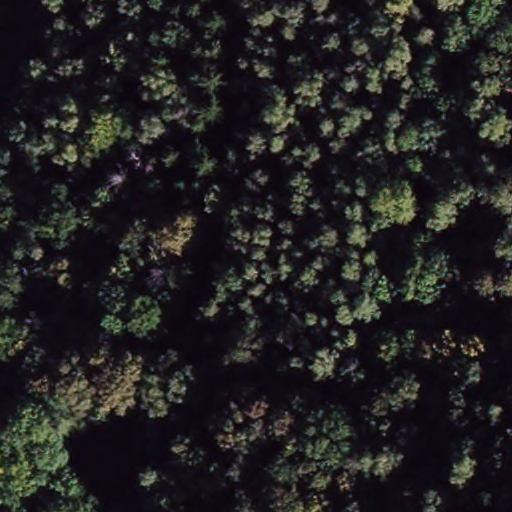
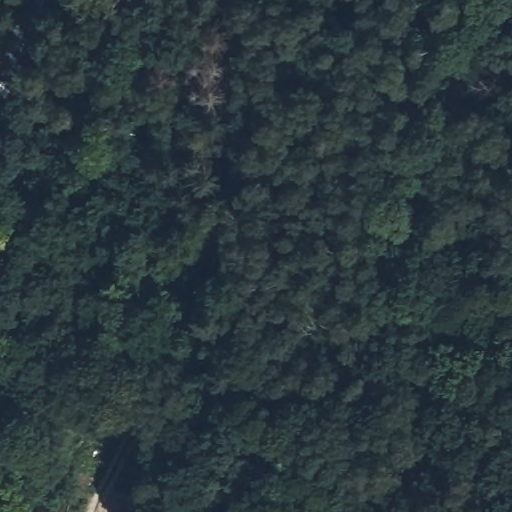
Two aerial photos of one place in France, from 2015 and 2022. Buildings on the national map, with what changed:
[]

